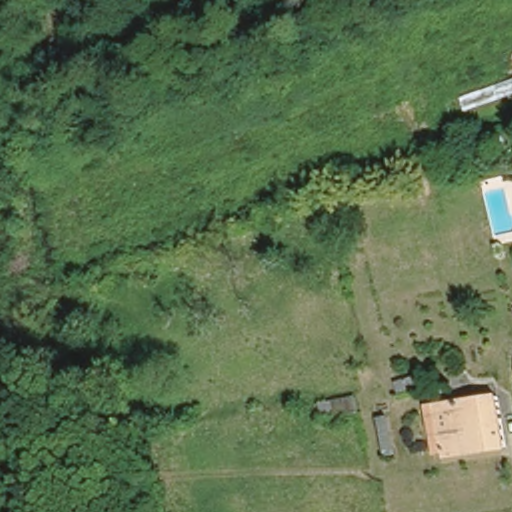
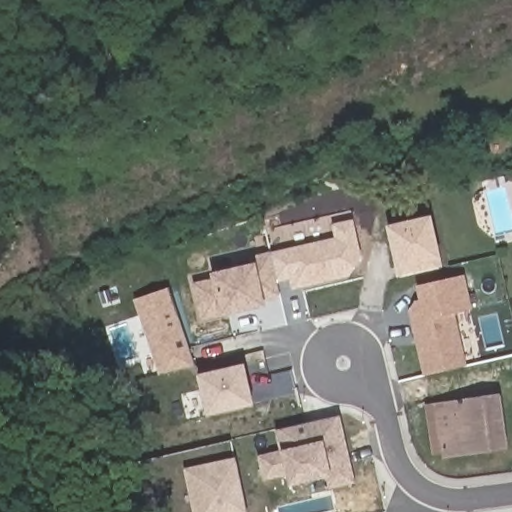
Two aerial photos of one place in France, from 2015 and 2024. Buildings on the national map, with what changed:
new [(441,267),(396,277),(395,269),(384,226),(430,216),(439,259),(441,267)]
new [(331,224),(352,220),(360,253),(348,277),(291,290),(289,280),(276,282),(280,297),(263,301),(263,307),(219,317),(199,321),(191,282),(209,280),(208,273),(254,264),(254,255),(333,238),(331,224)]
new [(412,303),(417,302),(413,287),(458,278),(465,311),(448,315),(459,367),(420,376),(406,312),(412,303)]
new [(164,287),(190,365),(156,372),(131,298),(164,287)]
new [(252,406),(206,417),(195,376),(243,364),(252,406)]
demolished [(358,394),(362,414),(319,423),(315,403),(358,394)]
unchanged [(441,418),(439,406),(500,397),(506,447),(443,456),(443,452),(434,453),(433,445),(430,421),(441,418)]
new [(350,480),(327,485),(325,473),(287,482),(284,470),(262,476),(258,454),(280,450),(275,427),(335,413),(343,448),(345,455),(350,480)]
new [(246,512),(192,512),(183,468),(234,457),(246,512)]

